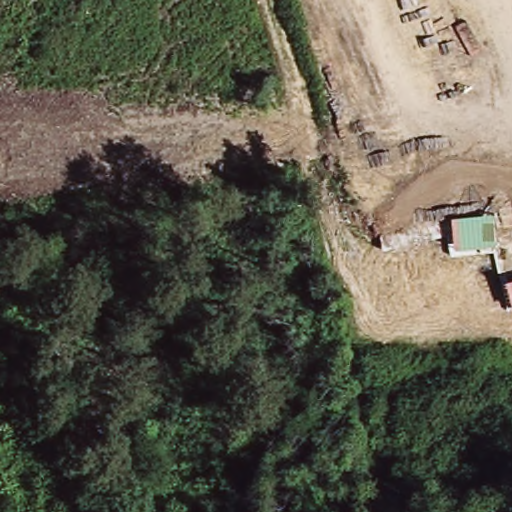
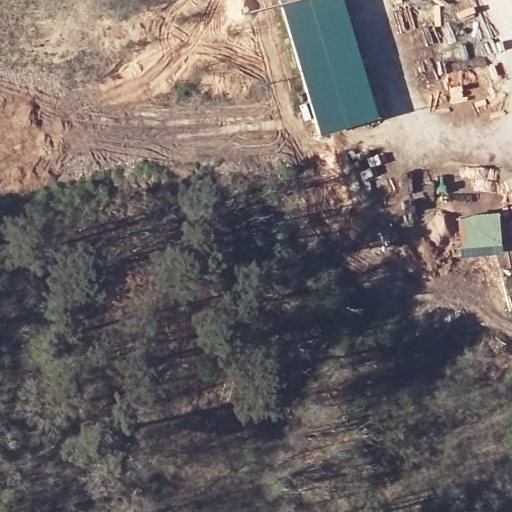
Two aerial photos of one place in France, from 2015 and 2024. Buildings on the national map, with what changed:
new [(321,137),(282,7),(305,0),(339,0),(376,120),(321,137)]
new [(455,217),(496,214),(498,247),(457,250),(455,217)]

